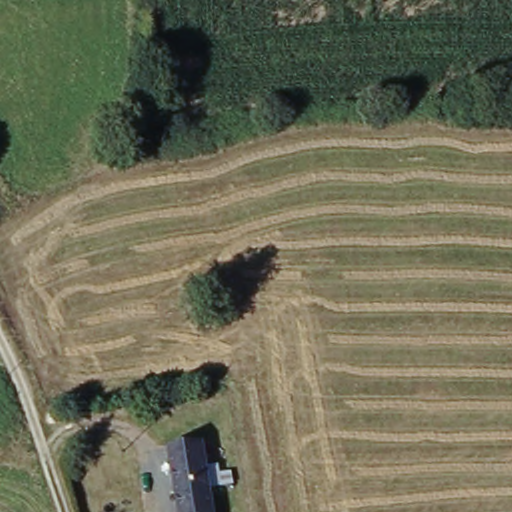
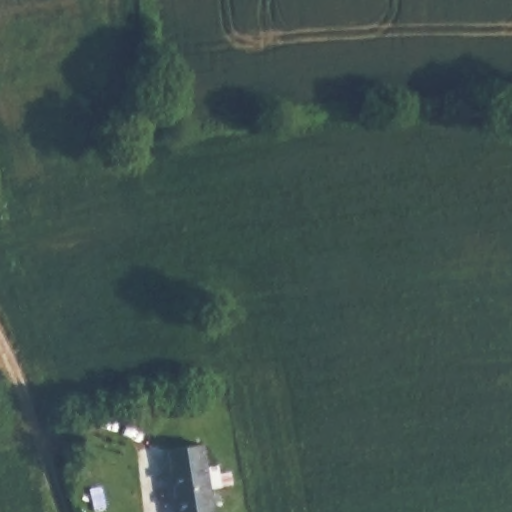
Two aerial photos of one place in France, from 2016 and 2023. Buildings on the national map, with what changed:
unchanged [(211,512),(179,512),(169,448),(200,444),(211,512)]

